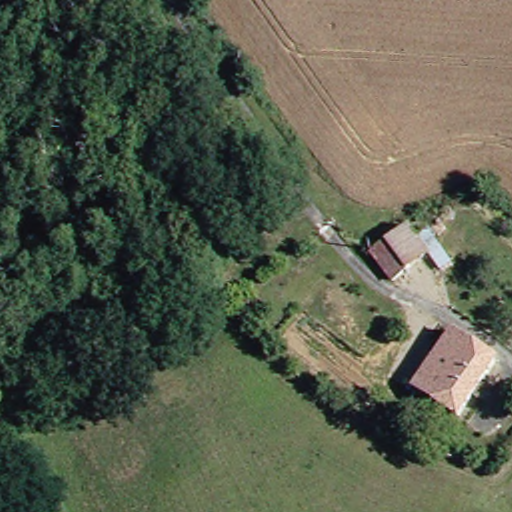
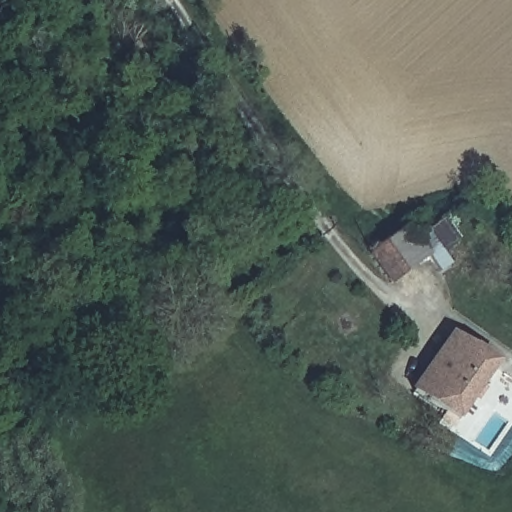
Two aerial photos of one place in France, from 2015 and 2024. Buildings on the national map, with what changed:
unchanged [(389,287),(372,263),(392,250),(414,235),(430,259),(410,273),(389,287)]
unchanged [(428,345),(433,348),(449,330),(496,367),(457,420),(404,380),(428,345)]

